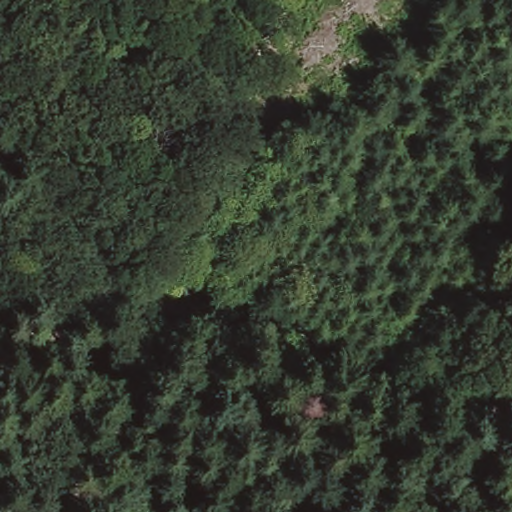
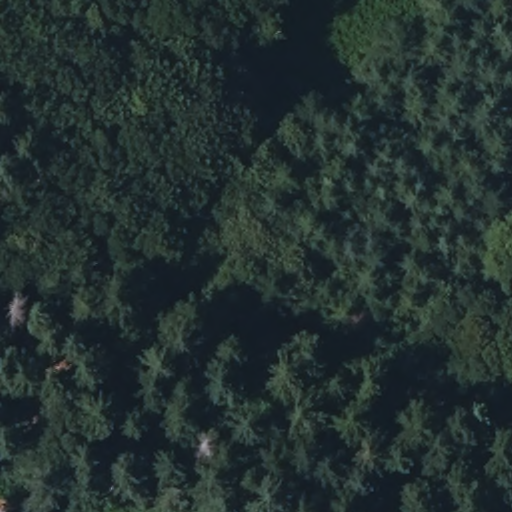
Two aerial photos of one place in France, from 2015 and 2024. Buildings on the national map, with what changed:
[]

